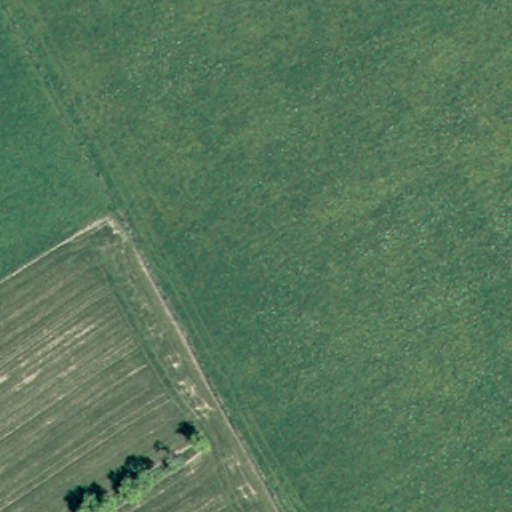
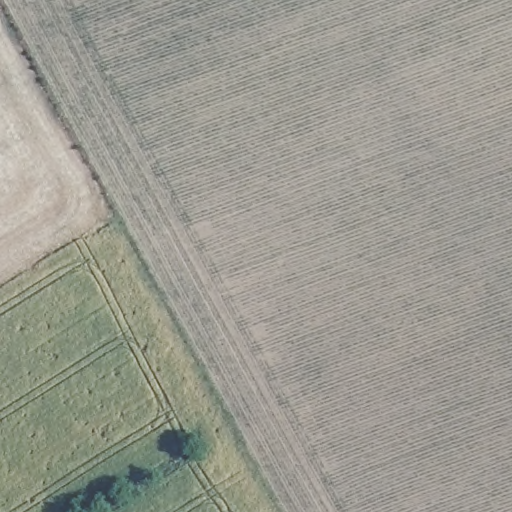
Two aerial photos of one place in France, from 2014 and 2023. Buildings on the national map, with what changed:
[]

